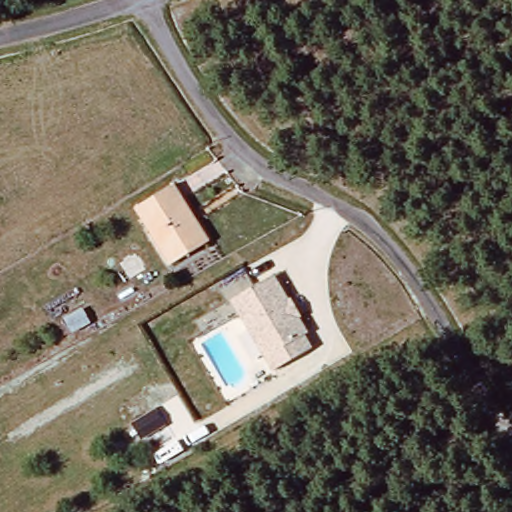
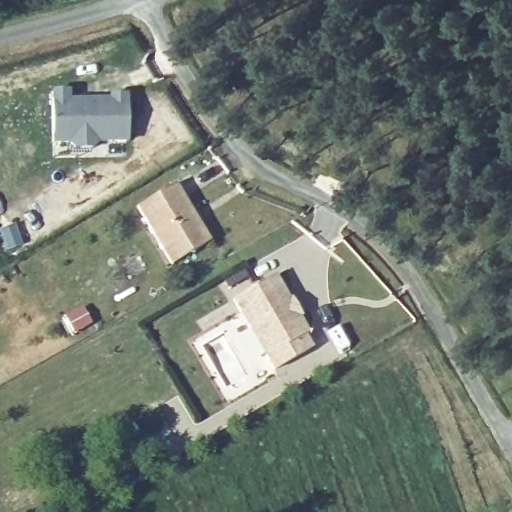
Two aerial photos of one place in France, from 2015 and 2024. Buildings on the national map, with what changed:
new [(96,142),(92,149),(68,148),(66,144),(50,145),(48,91),(66,90),(67,99),(106,99),(106,95),(125,95),(126,141),(96,142)]
unchanged [(170,264),(130,214),(163,189),(203,239),(170,264)]
unchanged [(277,275),(291,299),(295,297),(305,314),(302,315),(309,328),(311,331),(306,334),(314,347),(278,368),(268,351),(236,298),(277,275)]

